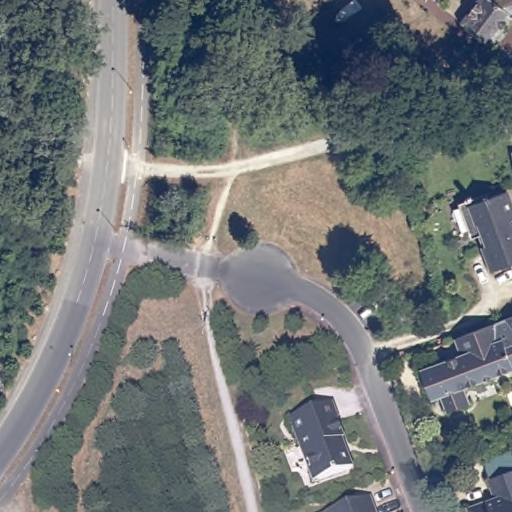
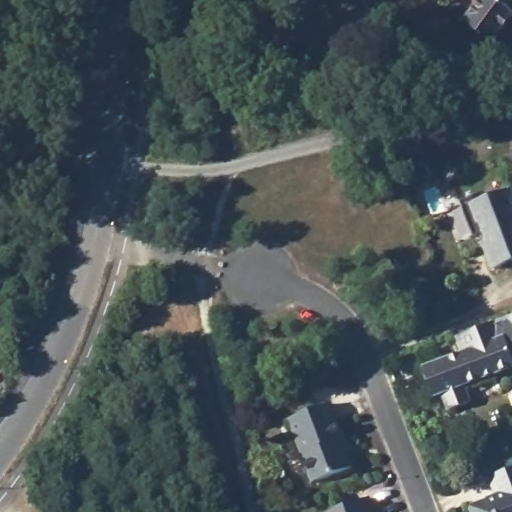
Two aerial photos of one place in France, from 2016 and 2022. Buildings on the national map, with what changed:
unchanged [(484,44),(457,22),(474,0),(512,0),(512,20),(505,17),(484,44)]
unchanged [(491,200),(510,194),(512,201),(512,268),(499,273),(490,249),(492,247),(487,237),(475,242),(462,205),(488,195),(491,200)]
unchanged [(462,352),(456,336),(478,328),(512,315),(512,369),(465,387),(471,403),(449,412),(442,395),(433,399),(429,387),(422,368),(427,366),(462,352)]
unchanged [(332,408),(340,428),(339,430),(343,445),(342,446),(351,474),(311,489),(290,424),(332,408)]
unchanged [(488,480),(512,470),(512,512),(468,512),(467,510),(495,500),(488,480)]
unchanged [(375,512),(328,512),(370,497),(375,512)]

